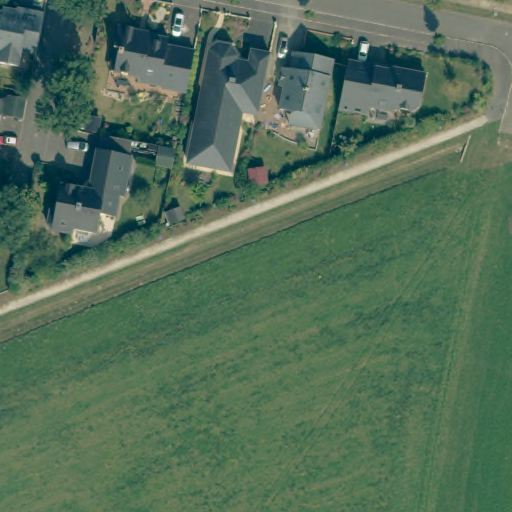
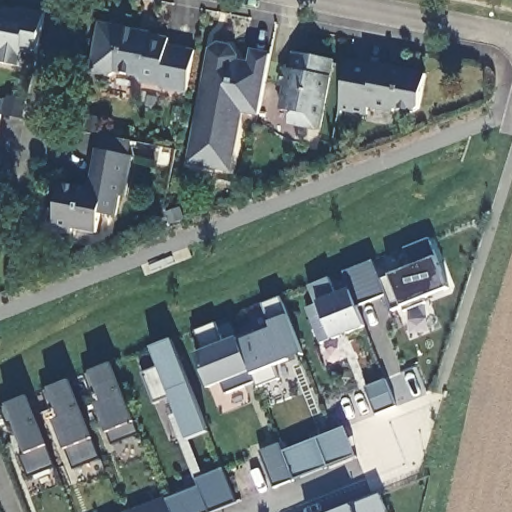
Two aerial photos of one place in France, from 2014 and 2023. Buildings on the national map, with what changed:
unchanged [(21,50),(18,66),(0,62),(0,12),(16,15),(17,8),(44,13),(36,53),(21,50)]
unchanged [(145,34),(149,40),(157,42),(158,39),(179,43),(177,50),(205,56),(204,63),(202,69),(196,97),(172,93),(173,91),(150,86),(145,80),(125,76),(130,54),(125,52),(129,31),(145,34)]
unchanged [(188,162),(195,126),(205,128),(211,93),(204,82),(210,50),(218,44),(230,46),(236,56),(235,61),(250,63),(252,51),(270,54),(264,88),(259,114),(241,111),(230,170),(188,162)]
unchanged [(296,111),(285,109),(290,86),(285,85),(288,67),(300,70),(303,53),(338,60),(325,129),(301,125),(293,123),(296,111)]
unchanged [(376,65),(376,67),(390,70),(391,67),(425,74),(419,107),(413,111),(395,108),(393,111),(368,106),(366,114),(339,108),(342,91),(348,60),(376,65)]
unchanged [(0,120),(0,115),(1,115),(0,120)]
unchanged [(119,196),(115,217),(100,214),(96,232),(72,228),(71,233),(51,229),(47,223),(50,209),(56,204),(61,183),(94,190),(96,180),(90,179),(96,149),(99,150),(101,135),(125,139),(132,141),(129,156),(132,156),(124,197),(119,196)]
unchanged [(170,167),(156,165),(160,147),(174,150),(170,167)]
new [(318,306),(310,286),(330,279),(334,295),(350,290),(343,272),(373,262),(380,279),(389,276),(413,267),(405,249),(431,241),(436,259),(449,289),(401,306),(390,310),(385,295),(355,307),(365,328),(333,340),(318,344),(305,310),(318,306)]
new [(203,351),(195,331),(215,324),(222,343),(237,337),(239,340),(270,329),(270,322),(261,305),(280,299),(286,316),(303,355),(275,366),(280,378),(257,388),(256,383),(226,394),(223,384),(207,389),(195,354),(203,351)]
new [(194,477),(164,400),(154,403),(144,374),(159,368),(151,348),(171,340),(207,433),(190,440),(204,476),(225,468),(238,503),(215,512),(170,512),(165,499),(198,487),(194,477)]
new [(112,363),(140,434),(112,445),(96,403),(103,401),(99,390),(92,393),(85,374),(112,363)]
new [(71,379),(102,459),(74,470),(55,420),(61,417),(57,407),(50,409),(43,390),(71,379)]
new [(386,379),(397,406),(377,415),(366,387),(386,379)]
new [(29,396),(57,467),(29,478),(20,455),(26,453),(15,423),(9,426),(1,407),(29,396)]
new [(280,444),(282,452),(348,429),(356,457),(275,488),(260,452),(280,444)]
new [(381,496),(387,512),(340,512),(351,507),(381,496)]

